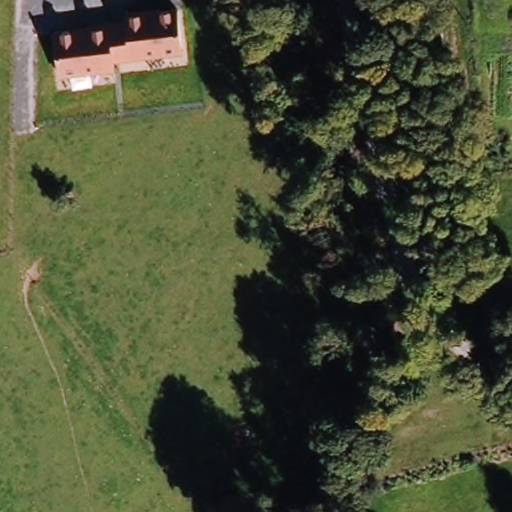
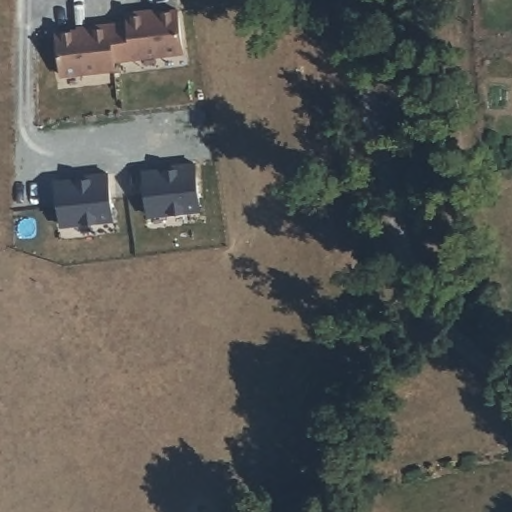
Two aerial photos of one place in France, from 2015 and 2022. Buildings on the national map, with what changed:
unchanged [(128,19),(127,10),(184,4),(189,53),(118,60),(118,73),(62,78),(57,28),(128,19)]
new [(195,164),(200,208),(148,214),(142,170),(195,164)]
new [(108,173),(114,218),(62,224),(56,179),(108,173)]

